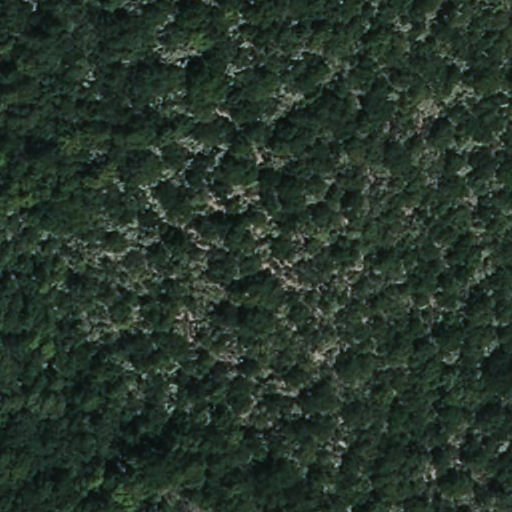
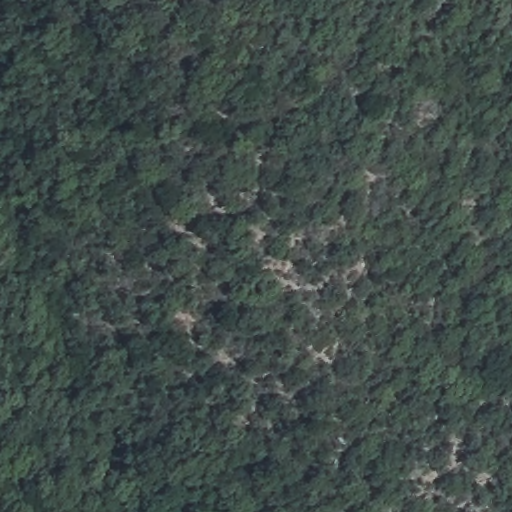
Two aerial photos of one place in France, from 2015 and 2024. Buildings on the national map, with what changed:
[]

